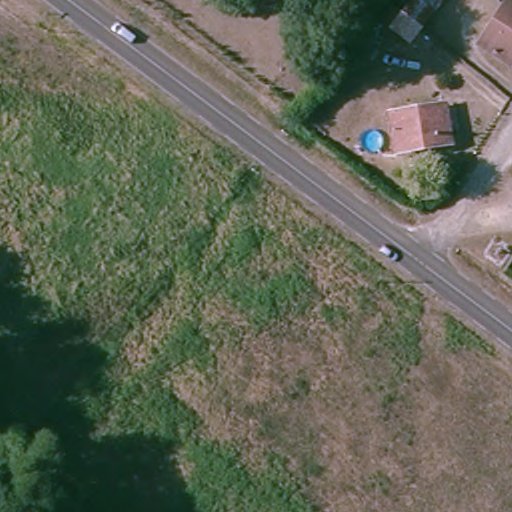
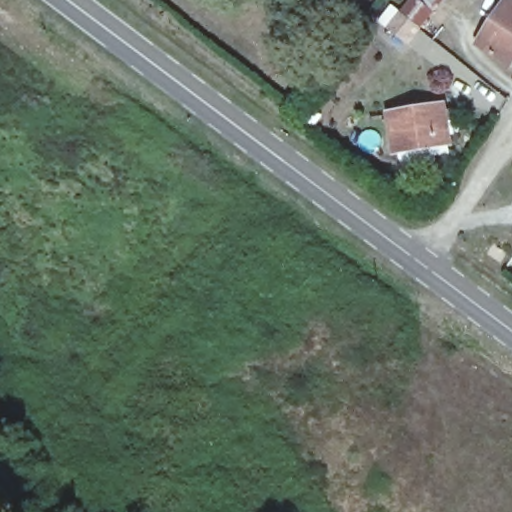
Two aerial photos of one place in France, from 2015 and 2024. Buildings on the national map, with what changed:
unchanged [(446,0),(406,54),(384,37),(412,0),(446,0)]
unchanged [(485,41),(512,4),(512,61),(485,41)]
unchanged [(449,145),(394,145),(394,110),(449,109),(449,145)]

